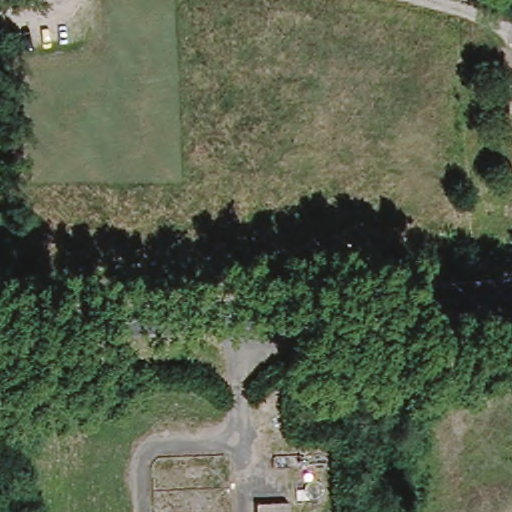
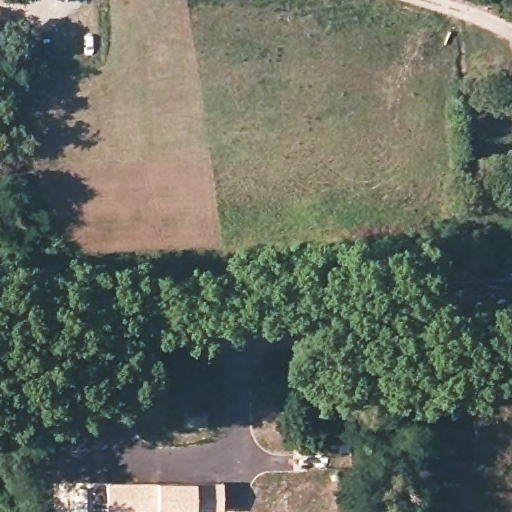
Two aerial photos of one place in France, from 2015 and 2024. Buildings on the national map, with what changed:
new [(223,512),(108,512),(108,488),(223,488),(223,512)]
demolished [(253,501),(286,498),(286,512),(254,512),(253,501)]

